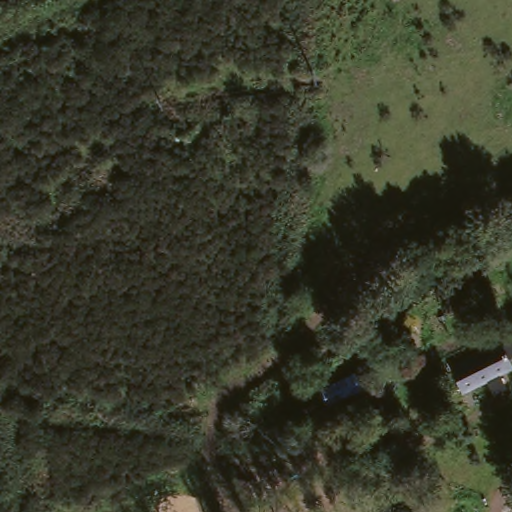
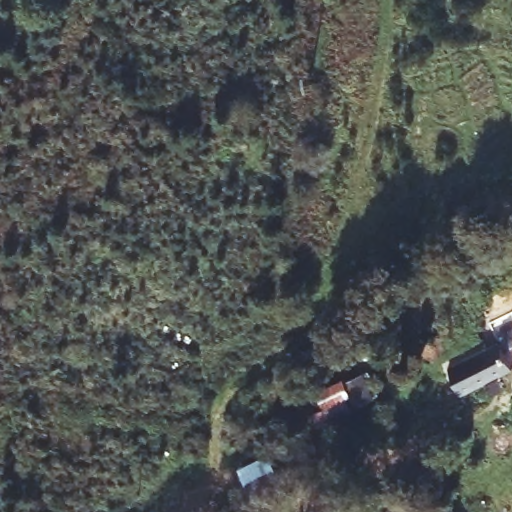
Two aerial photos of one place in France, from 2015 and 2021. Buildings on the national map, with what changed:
unchanged [(489,348),(501,369),(504,373),(504,375),(456,402),(441,376),(489,348)]
unchanged [(322,413),(312,394),(353,375),(366,396),(322,413)]

